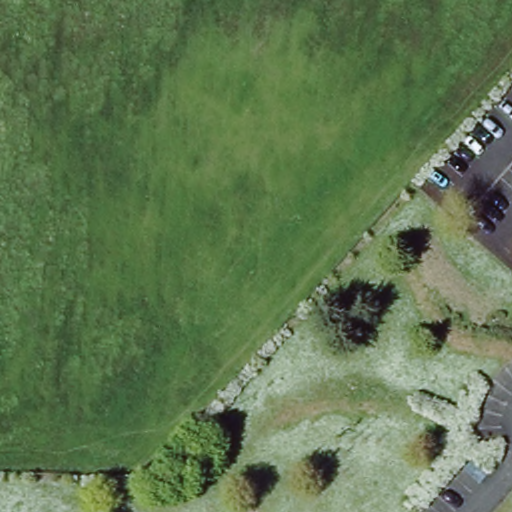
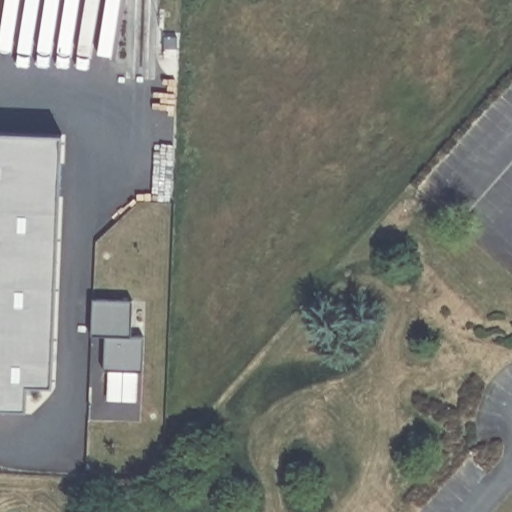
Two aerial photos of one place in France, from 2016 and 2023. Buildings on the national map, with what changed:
new [(24,408),(0,407),(0,132),(59,133),(51,384),(26,384),(24,408)]
new [(106,334),(92,334),(93,299),(132,300),(131,336),(143,337),(143,371),(104,371),(106,334)]

